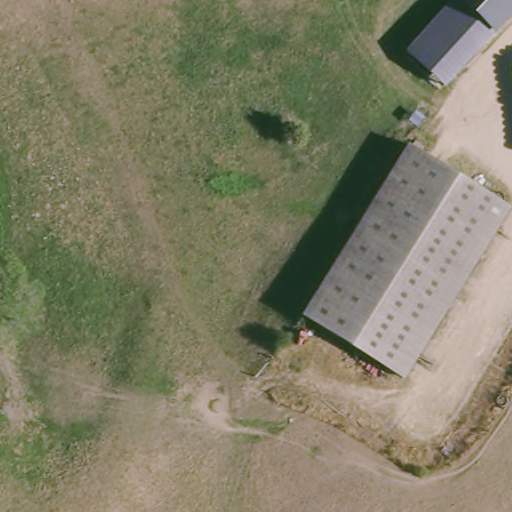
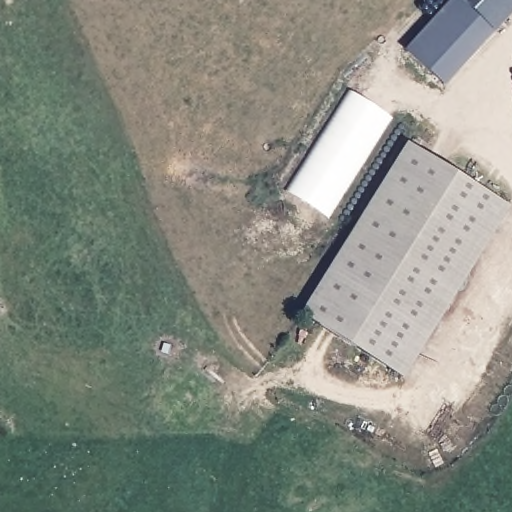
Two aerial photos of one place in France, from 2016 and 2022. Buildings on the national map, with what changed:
unchanged [(462,22),(468,16),(465,10),(467,8),(465,2),(467,0),(512,0),(512,26),(491,48),(462,22)]
unchanged [(467,8),(465,10),(468,16),(462,22),(491,48),(449,91),(412,57),(465,2),(467,8)]
new [(350,91),(394,117),(387,127),(332,219),(289,193),(350,91)]
unchanged [(512,206),(410,377),(310,317),(413,142),(512,201),(512,206)]

